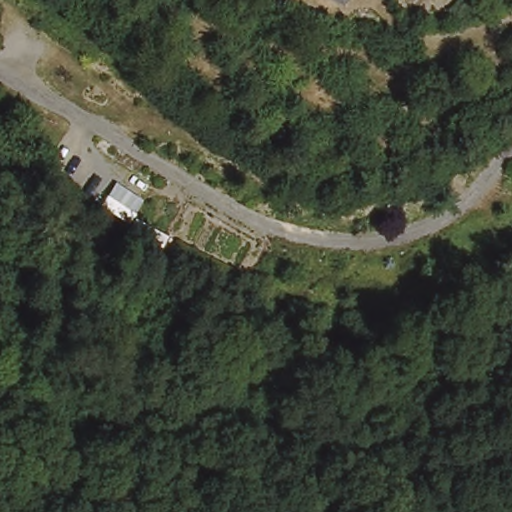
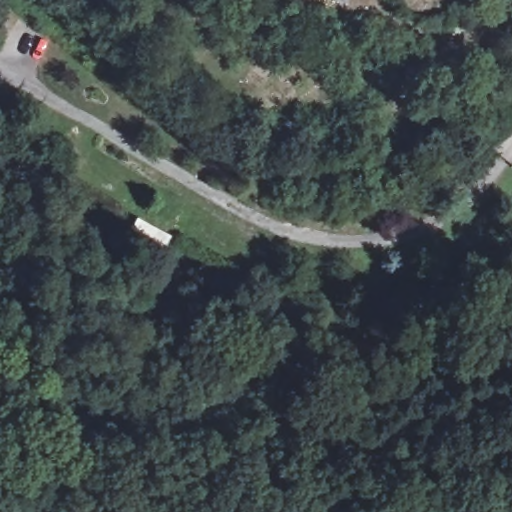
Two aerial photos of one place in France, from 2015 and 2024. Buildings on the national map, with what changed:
unchanged [(335,0),(338,0),(337,1),(335,0)]

